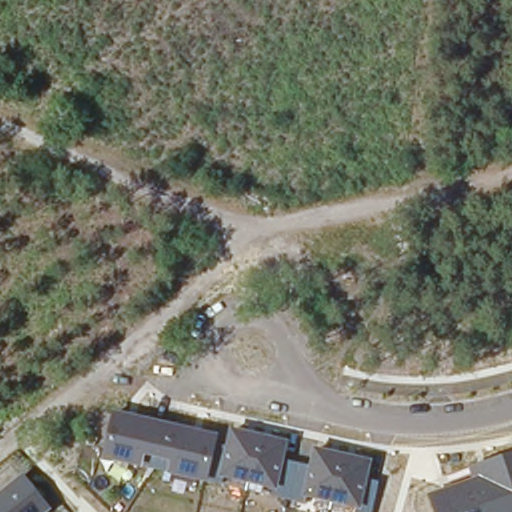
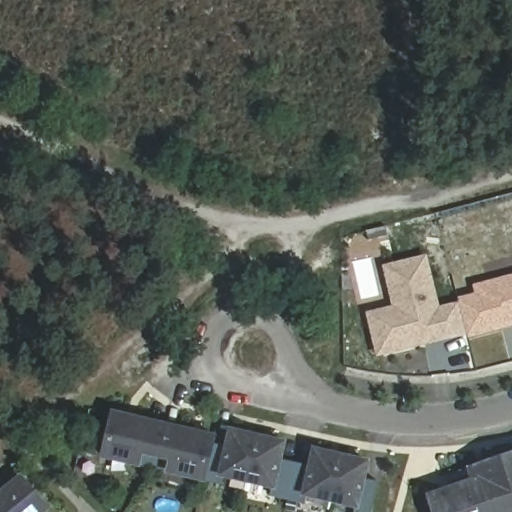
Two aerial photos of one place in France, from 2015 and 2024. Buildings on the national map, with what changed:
new [(387,266),(427,257),(439,309),(461,303),(468,331),(381,352),(374,324),(371,313),(397,307),(387,266)]
new [(479,293),(477,285),(512,276),(512,322),(468,331),(461,303),(459,299),(479,293)]
unchanged [(113,410),(217,433),(215,441),(227,444),(230,427),(288,440),(284,458),(309,465),(314,447),(371,461),(367,478),(378,482),(372,512),(355,512),(356,508),(305,497),(303,503),(272,495),(273,489),(223,477),(220,485),(209,481),(166,473),(140,468),(103,458),(113,410)]
unchanged [(512,452),(512,512),(432,512),(427,495),(472,480),(468,467),(512,452)]
unchanged [(50,510),(47,512),(0,512),(0,493),(23,475),(50,510)]

